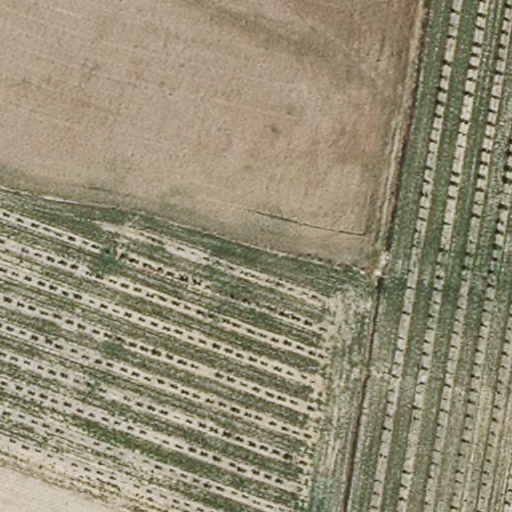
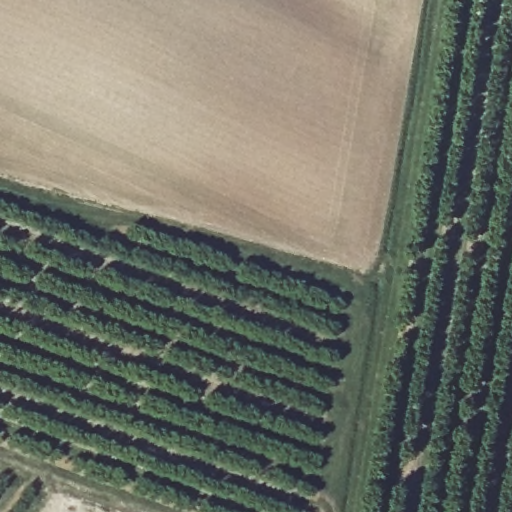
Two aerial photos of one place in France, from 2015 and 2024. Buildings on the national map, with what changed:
[]

